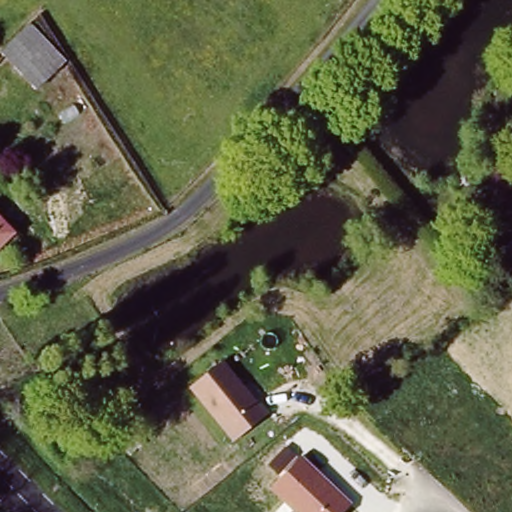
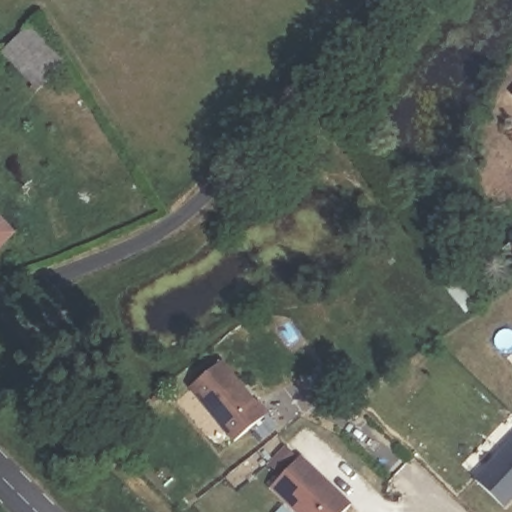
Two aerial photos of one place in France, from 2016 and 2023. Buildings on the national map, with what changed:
unchanged [(35,93),(0,58),(0,53),(27,27),(64,63),(35,93)]
unchanged [(0,241),(0,231),(5,236),(0,241)]
unchanged [(509,258),(500,248),(512,238),(512,255),(509,258)]
unchanged [(266,415),(233,441),(189,386),(221,361),(266,415)]
new [(512,445),(512,502),(505,509),(477,481),(512,445)]
unchanged [(280,476),(268,465),(287,446),(350,504),(342,512),(293,512),(270,489),(280,476)]

